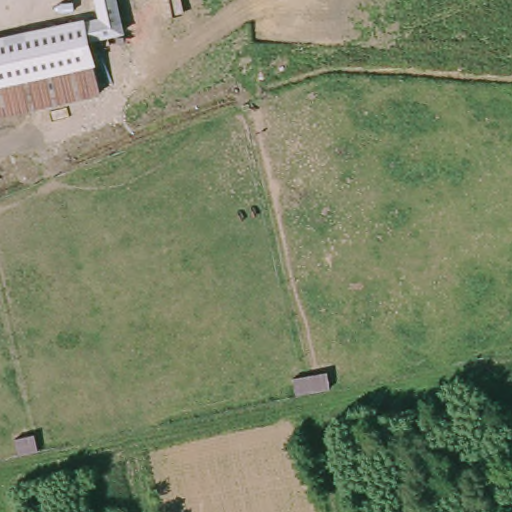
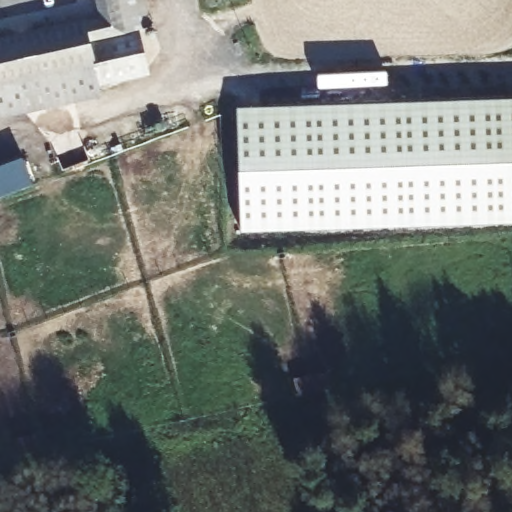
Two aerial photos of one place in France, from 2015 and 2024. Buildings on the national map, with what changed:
demolished [(96,10),(94,0),(118,0),(123,23),(121,24),(93,32),(107,87),(0,118),(0,40),(96,10)]
new [(98,85),(101,96),(0,118),(0,35),(85,16),(86,21),(100,18),(96,0),(146,0),(151,25),(140,28),(149,72),(98,85)]
new [(512,95),(512,220),(241,229),(236,105),(512,95)]
new [(0,193),(0,164),(22,156),(31,182),(0,193)]

